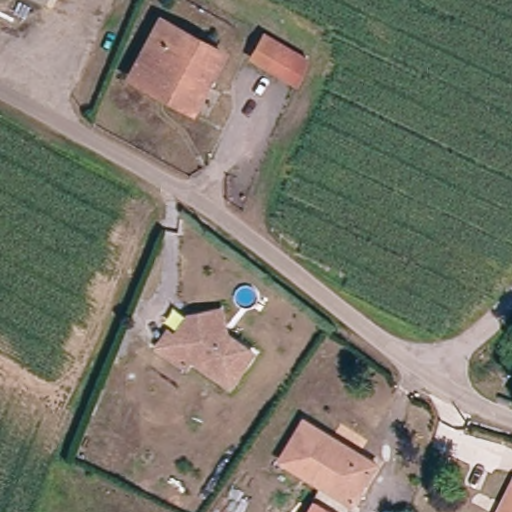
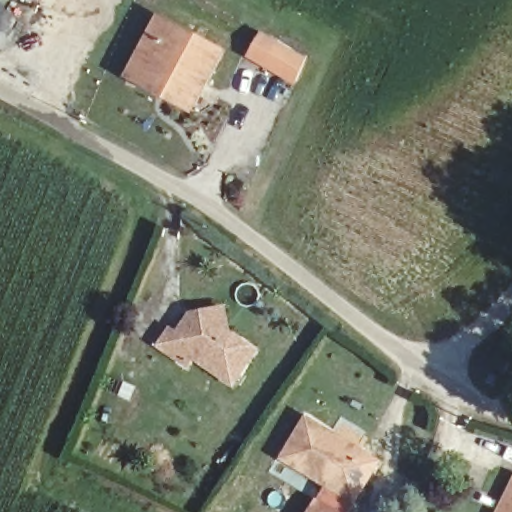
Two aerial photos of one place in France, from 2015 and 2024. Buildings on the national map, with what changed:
unchanged [(48,1),(46,0),(49,0),(48,1)]
unchanged [(162,100),(166,91),(128,71),(153,23),(216,57),(187,113),(162,100)]
unchanged [(252,56),(265,32),(309,57),(296,81),(252,56)]
unchanged [(237,382),(198,352),(192,360),(165,339),(176,325),(182,329),(197,310),(219,308),(231,306),(233,329),(261,350),(237,382)]
unchanged [(378,463),(353,502),(283,458),(307,419),(378,463)]
unchanged [(501,512),(512,490),(512,512),(501,512)]
unchanged [(327,512),(318,512),(320,508),(327,512)]

